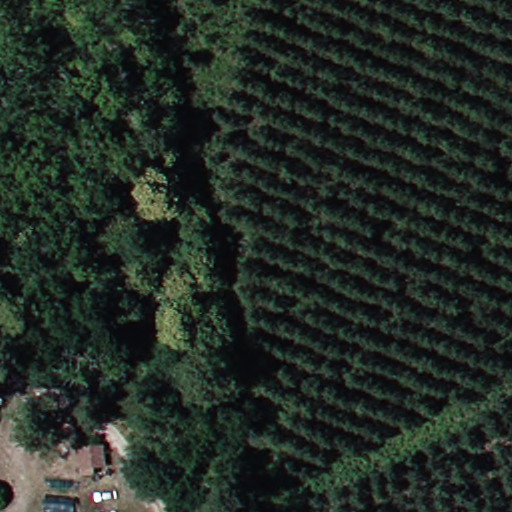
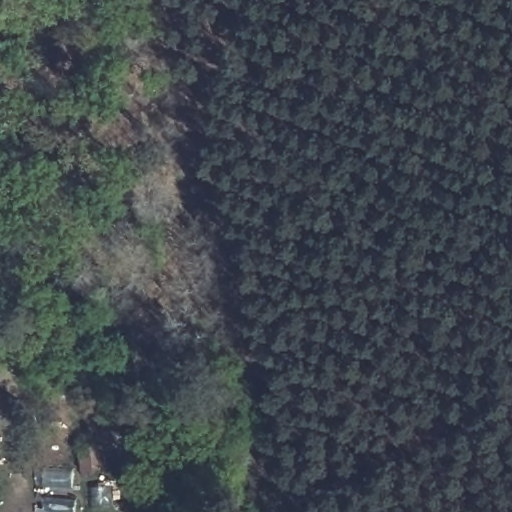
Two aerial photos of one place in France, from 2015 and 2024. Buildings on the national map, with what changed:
unchanged [(86,475),(84,445),(111,442),(113,469),(86,475)]

